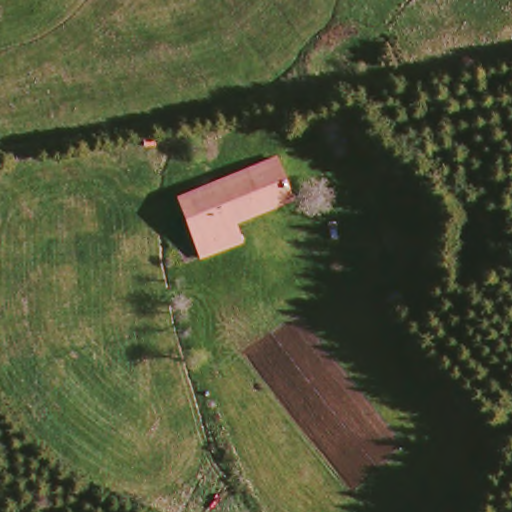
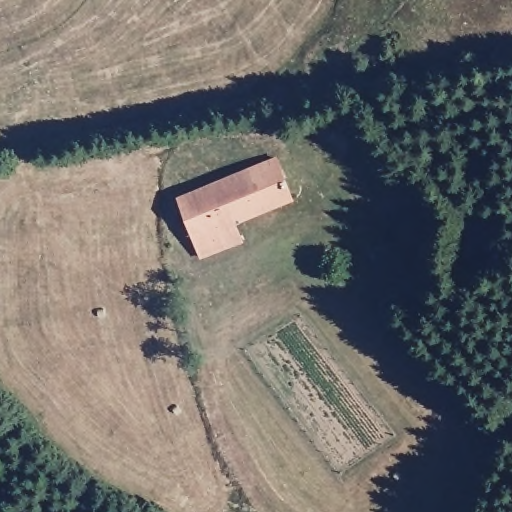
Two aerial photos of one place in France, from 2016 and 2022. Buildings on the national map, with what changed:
unchanged [(280,152),(297,192),(227,227),(238,249),(206,267),(173,204),(280,152)]

